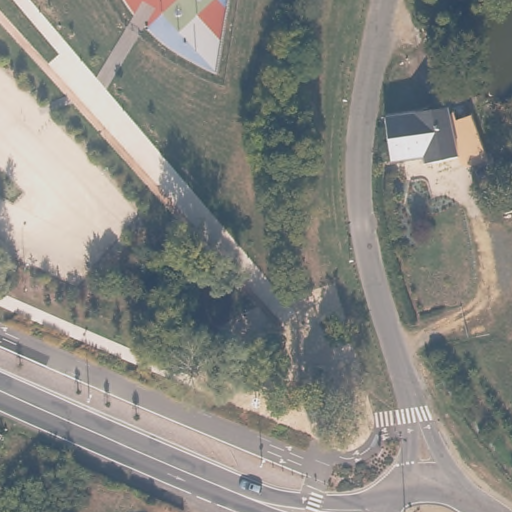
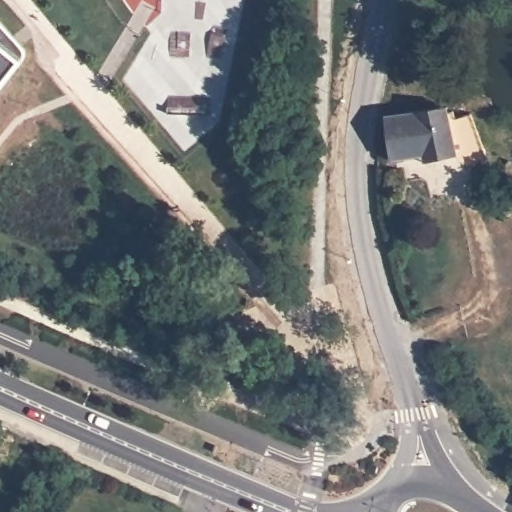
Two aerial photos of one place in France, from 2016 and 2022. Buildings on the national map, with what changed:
new [(22,48),(27,56),(25,59),(0,90),(0,24),(22,48)]
unchanged [(420,159),(418,155),(388,163),(379,116),(437,104),(439,110),(442,109),(444,116),(447,115),(461,112),(470,145),(470,151),(427,162),(420,164),(420,159)]

